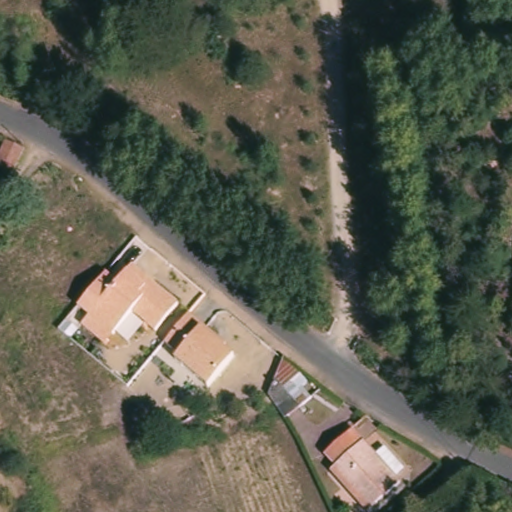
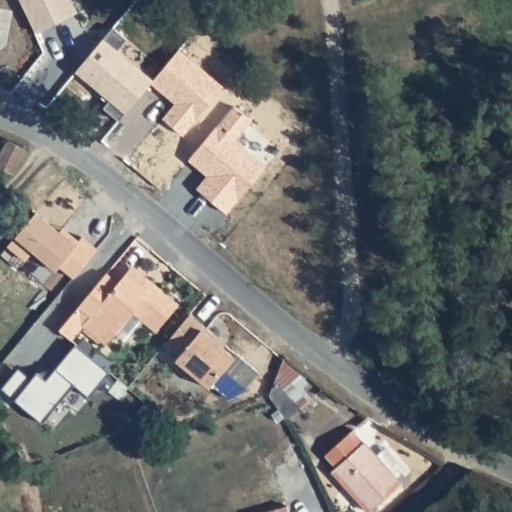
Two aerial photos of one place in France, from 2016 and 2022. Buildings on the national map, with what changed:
new [(35,30),(20,0),(70,0),(74,10),(35,30)]
new [(153,84),(151,86),(119,125),(103,112),(110,104),(76,75),(113,31),(127,43),(117,54),(153,84)]
new [(153,84),(179,53),(224,90),(184,139),(163,122),(178,104),(168,95),(166,98),(151,86),(153,84)]
unchanged [(10,177),(0,173),(0,143),(16,150),(21,153),(10,177)]
new [(39,216),(68,240),(71,237),(81,245),(85,241),(100,254),(76,282),(62,270),(59,274),(36,255),(28,264),(10,250),(39,216)]
unchanged [(156,332),(131,312),(105,344),(81,325),(89,315),(79,306),(108,273),(119,282),(132,265),(179,304),(156,332)]
unchanged [(228,345),(224,350),(232,356),(204,387),(171,360),(176,353),(164,344),(190,313),(228,345)]
new [(46,379),(77,344),(110,373),(88,397),(74,385),(41,422),(14,398),(1,387),(19,366),(32,377),(37,371),(46,379)]
unchanged [(305,405),(290,418),(276,395),(281,377),(305,405)]
unchanged [(406,473),(399,482),(402,485),(373,512),(366,512),(332,474),(337,469),(324,457),(346,434),(360,448),(363,444),(377,459),(385,451),(406,473)]
new [(285,507),(286,512),(268,512),(285,507)]

